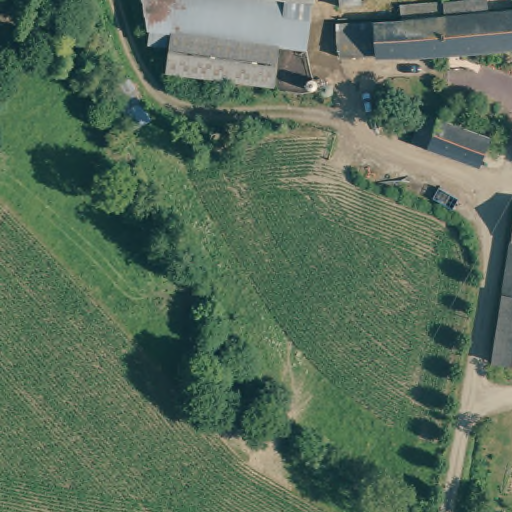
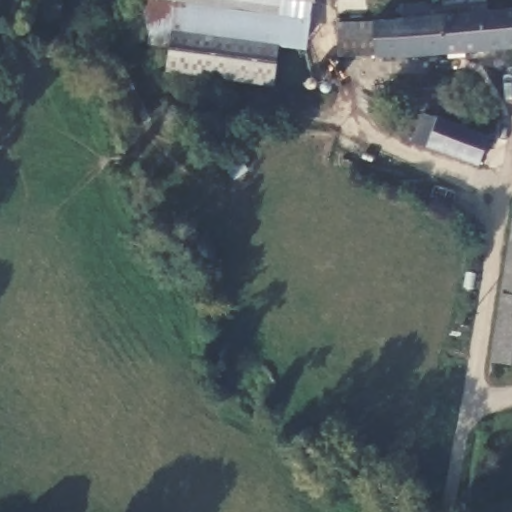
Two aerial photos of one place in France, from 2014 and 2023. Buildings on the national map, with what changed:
unchanged [(284,40),(280,78),(178,65),(181,41),(169,39),(152,16),(154,0),(233,0),(314,11),(309,43),(284,40)]
unchanged [(233,0),(317,0),(314,11),(233,0)]
unchanged [(403,48),(342,52),(340,18),(403,14),(402,0),(409,0),(488,0),(490,9),(509,8),(512,8),(512,43),(406,50),(403,48)]
unchanged [(432,94),(495,116),(477,172),(470,170),(413,149),(432,94)]
unchanged [(505,286),(512,245),(512,287),(505,286)]
unchanged [(493,356),(505,286),(512,287),(512,360),(493,356)]

